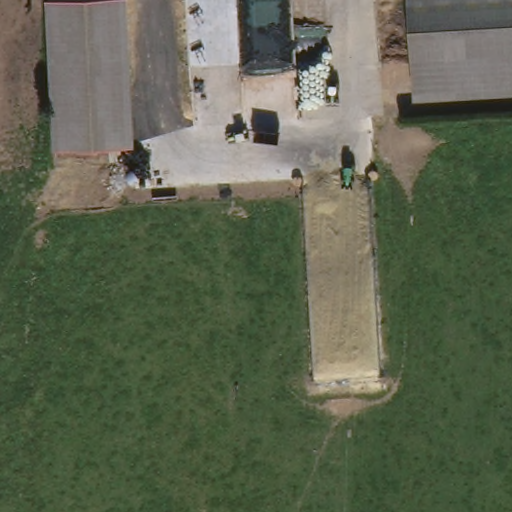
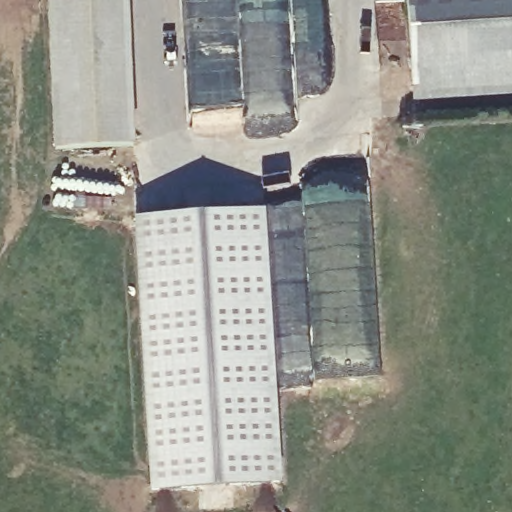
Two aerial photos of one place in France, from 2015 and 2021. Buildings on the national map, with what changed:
unchanged [(52,146),(49,57),(46,0),(124,0),(127,49),(132,143),(52,146)]
unchanged [(407,86),(407,0),(512,0),(512,84),(407,86)]
new [(133,215),(264,208),(280,483),(151,492),(133,215)]

